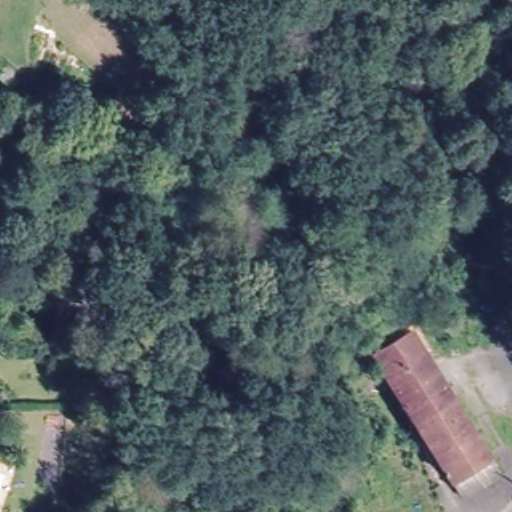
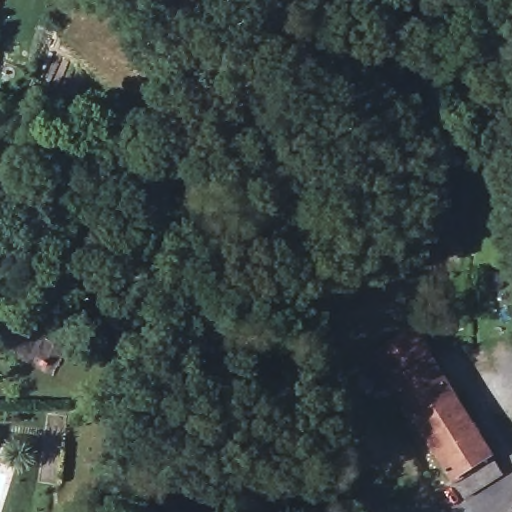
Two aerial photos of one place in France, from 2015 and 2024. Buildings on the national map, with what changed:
unchanged [(471,489),(462,495),(375,354),(413,330),(433,363),(500,471),(471,489)]

